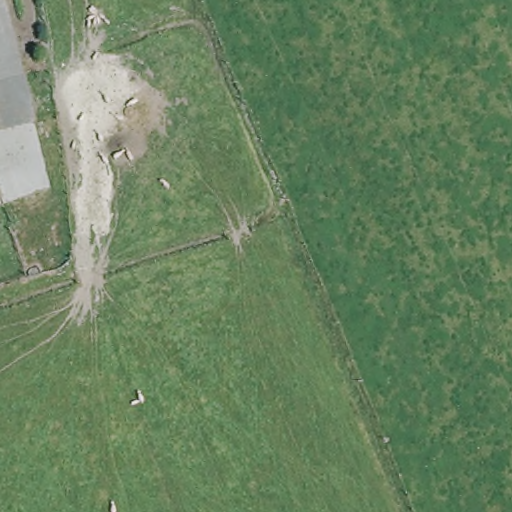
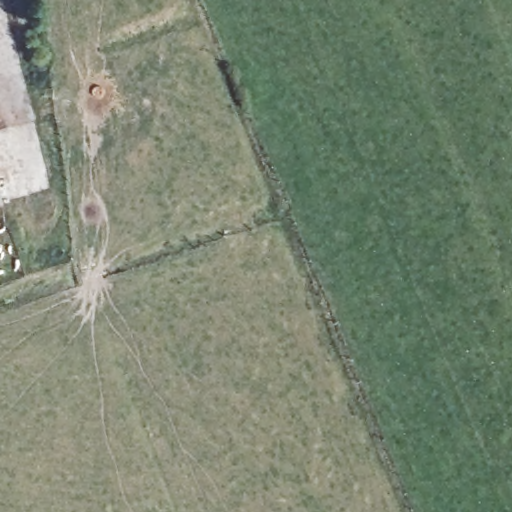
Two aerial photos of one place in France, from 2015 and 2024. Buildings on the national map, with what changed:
unchanged [(0,208),(0,199),(2,207),(0,208)]

